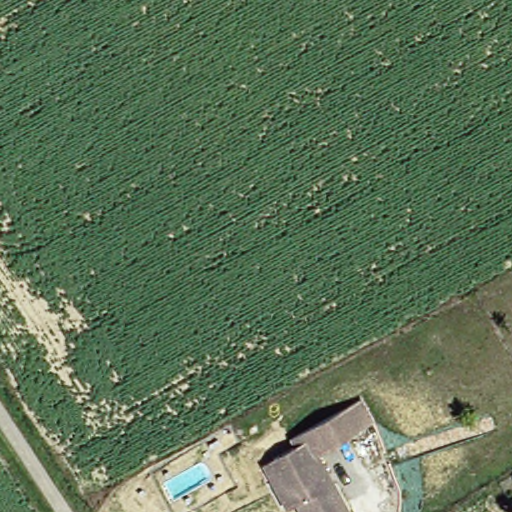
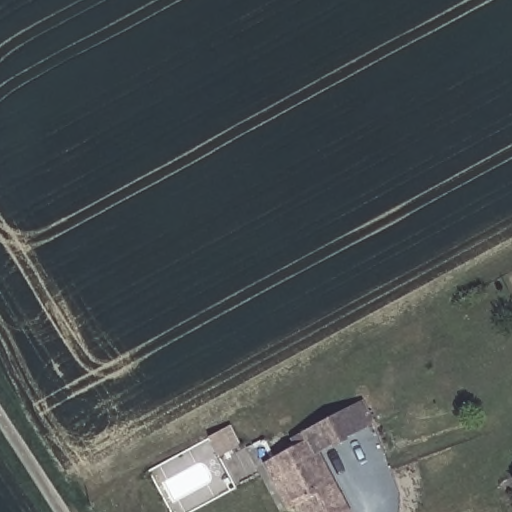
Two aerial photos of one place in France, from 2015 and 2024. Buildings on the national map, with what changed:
unchanged [(346,407),(359,400),(371,421),(357,429),(313,453),(301,430),(346,407)]
unchanged [(284,510),(260,463),(272,456),(291,446),(287,438),(301,430),(313,453),(346,512),(299,512),(294,503),(284,510)]

